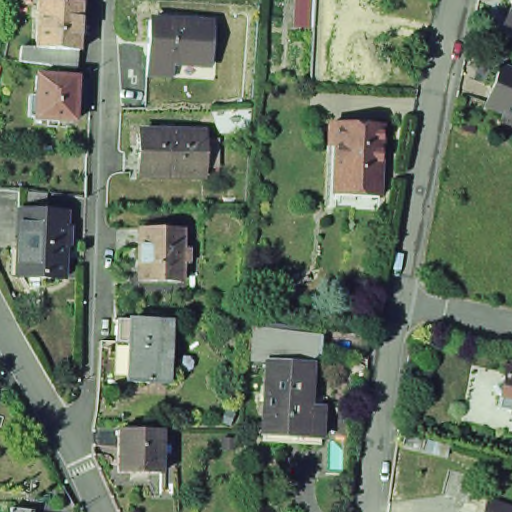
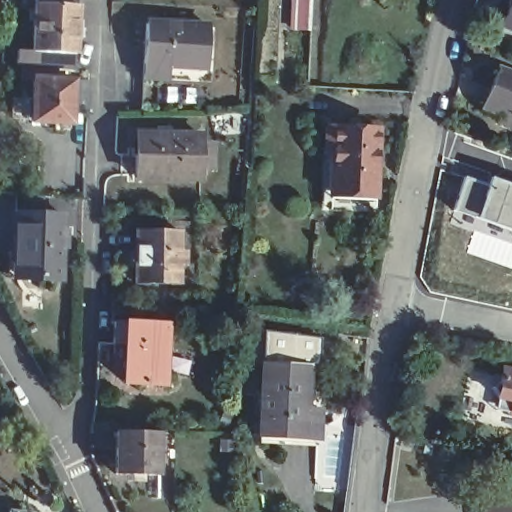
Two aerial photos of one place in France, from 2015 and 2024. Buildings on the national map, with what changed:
unchanged [(15,36),(30,37),(34,0),(75,0),(72,41),(72,59),(15,53),(15,36)]
unchanged [(500,34),(510,12),(512,12),(512,39),(500,34)]
unchanged [(144,78),(145,64),(147,23),(209,27),(207,69),(167,66),(167,80),(144,78)]
unchanged [(502,119),(505,112),(487,104),(502,67),(512,71),(512,123),(502,119)]
unchanged [(26,120),(26,117),(19,117),(20,99),(26,99),(29,77),(69,80),(82,81),(80,110),(66,108),(65,123),(26,120)]
unchanged [(330,210),(332,193),(335,155),(325,155),(327,128),(378,131),(374,196),(373,213),(330,210)]
unchanged [(215,172),(200,171),(200,182),(138,182),(138,136),(200,137),(200,147),(215,147),(215,172)]
new [(462,176),(485,183),(487,176),(512,183),(512,234),(450,212),(462,176)]
unchanged [(30,276),(32,251),(25,251),(26,222),(26,212),(74,213),(74,226),(71,278),(30,276)]
unchanged [(142,281),(142,228),(184,229),(182,282),(142,281)]
unchanged [(122,391),(124,343),(124,319),(177,321),(175,382),(137,382),(136,391),(122,391)]
unchanged [(318,332),(316,353),(309,361),(265,357),(245,356),(247,322),(318,332)]
unchanged [(314,395),(322,396),(317,433),(304,432),(260,429),(265,357),(309,361),(307,389),(312,389),(314,395)]
unchanged [(500,399),(494,389),(502,382),(505,370),(512,372),(512,414),(508,412),(497,410),(500,399)]
unchanged [(121,472),(122,446),(95,445),(96,429),(98,429),(122,430),(165,431),(162,474),(121,472)]
unchanged [(512,507),(512,512),(490,512),(492,501),(512,507)]

